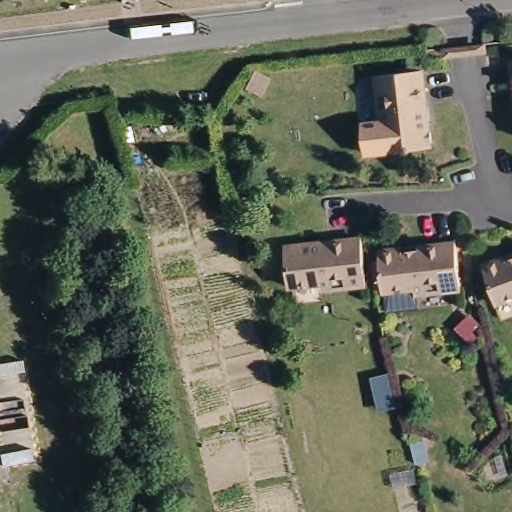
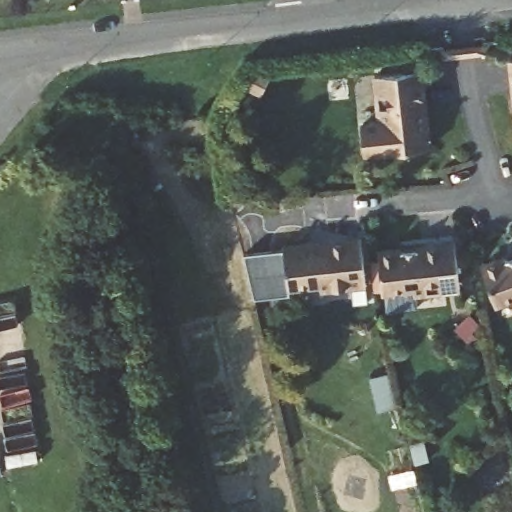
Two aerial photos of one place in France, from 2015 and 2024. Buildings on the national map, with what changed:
unchanged [(369,121),(387,119),(385,85),(391,84),(390,67),(427,65),(437,146),(397,151),(373,153),(369,121)]
unchanged [(369,233),(373,274),(360,276),(362,288),(328,292),(327,282),(298,286),(292,241),(369,233)]
unchanged [(460,246),(464,283),(450,285),(450,293),(421,296),(420,290),(384,292),(382,252),(460,246)]
new [(245,253),(284,249),(290,293),(255,297),(245,253)]
unchanged [(512,258),(512,296),(500,301),(488,266),(512,258)]

